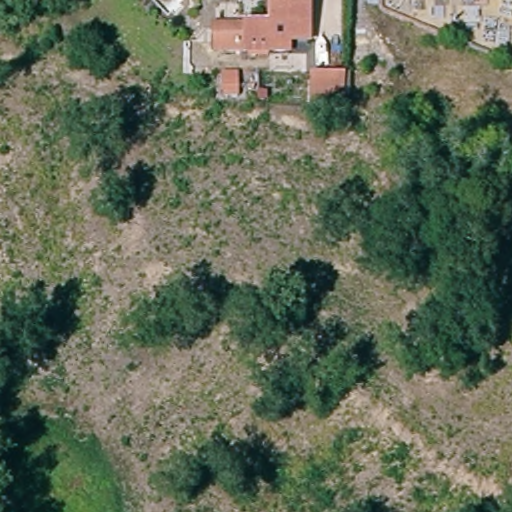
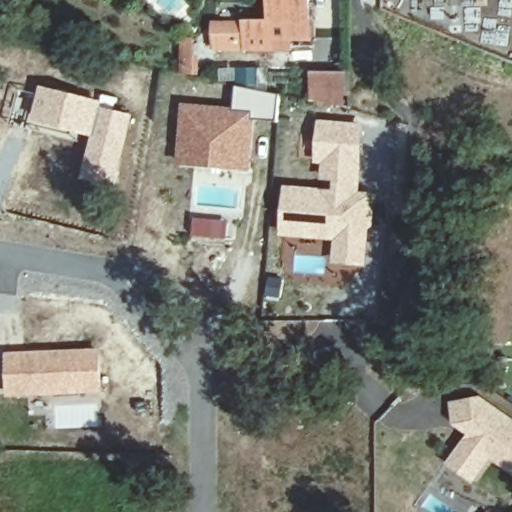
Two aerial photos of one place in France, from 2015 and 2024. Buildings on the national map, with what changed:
new [(212,49),(213,21),(274,20),(274,0),(315,0),(315,19),(315,36),(291,36),(291,52),(249,50),(212,49)]
demolished [(315,19),(274,20),(274,0),(315,0),(315,19)]
demolished [(274,50),(243,48),(243,19),(274,20),(274,36),(274,50)]
new [(233,108),(237,87),(236,67),(258,68),(259,90),(279,94),(277,120),(254,118),(250,169),(177,164),(182,104),(233,108)]
new [(316,74),(347,74),(347,101),(316,101),(316,74)]
new [(103,101),(101,106),(134,115),(115,187),(82,179),(93,136),(32,121),(41,85),(103,101)]
new [(360,127),(356,162),(359,163),(356,180),(324,176),(326,159),(318,157),(322,124),(360,127)]
new [(367,196),(362,250),(337,248),(338,236),(284,232),(288,189),(367,196)]
new [(100,348),(103,391),(7,397),(5,352),(100,348)]
new [(512,474),(491,459),(475,484),(446,464),(467,434),(452,423),(449,401),(481,396),(512,418),(512,474)]

